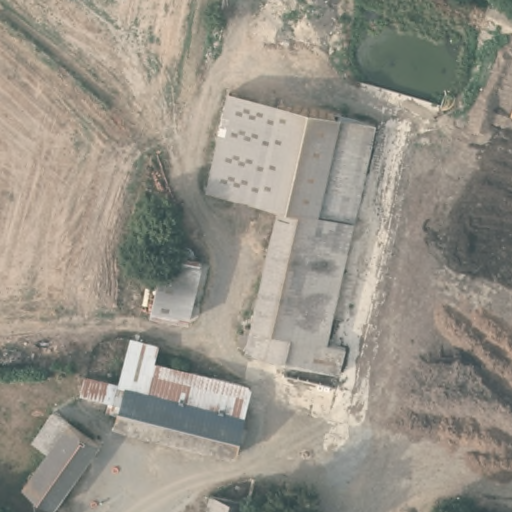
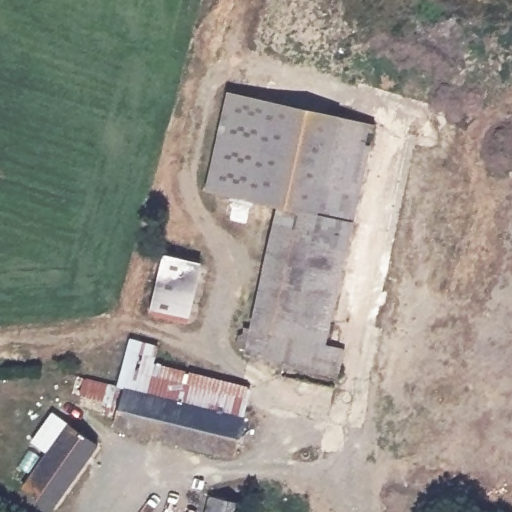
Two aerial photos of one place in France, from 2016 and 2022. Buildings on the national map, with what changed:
unchanged [(285,202),(212,183),(234,97),(344,123),(324,210),(285,202)]
unchanged [(256,332),(285,202),(324,210),(344,123),(378,131),(325,349),(256,332)]
unchanged [(151,312),(165,257),(205,266),(191,322),(151,312)]
unchanged [(320,368),(252,352),(256,332),(325,349),(320,368)]
unchanged [(120,384),(129,336),(137,337),(159,341),(156,360),(149,391),(147,390),(124,385),(120,384)]
unchanged [(252,383),(246,413),(151,391),(149,391),(156,360),(252,383)]
unchanged [(246,413),(237,454),(118,427),(121,413),(108,410),(111,399),(81,393),(86,376),(120,384),(124,385),(147,390),(149,391),(151,391),(246,413)]
unchanged [(49,451),(32,437),(52,409),(69,420),(98,441),(57,503),(27,484),(49,451)]
unchanged [(208,493),(250,502),(247,512),(204,512),(208,493)]

